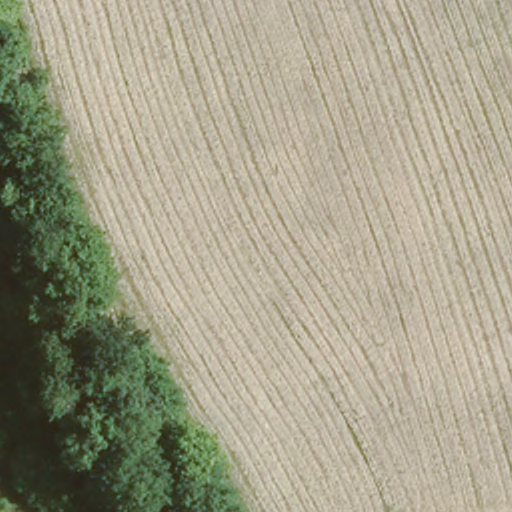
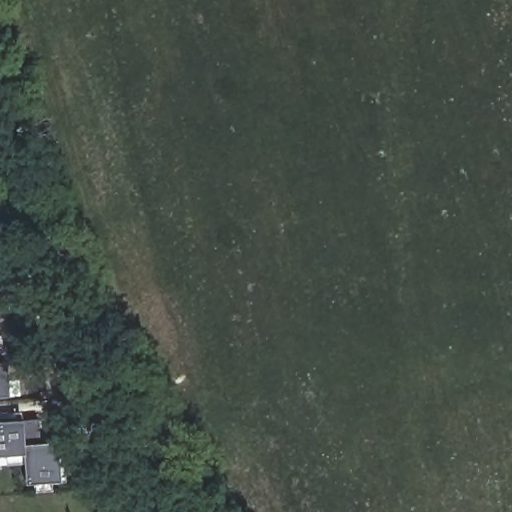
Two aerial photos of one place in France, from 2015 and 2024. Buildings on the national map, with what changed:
new [(0,397),(0,365),(8,365),(11,396),(0,397)]
new [(26,484),(24,456),(0,458),(0,422),(24,421),(26,444),(63,443),(66,482),(26,484)]

